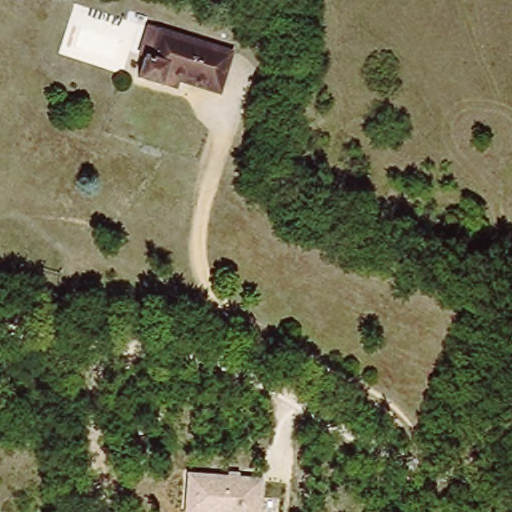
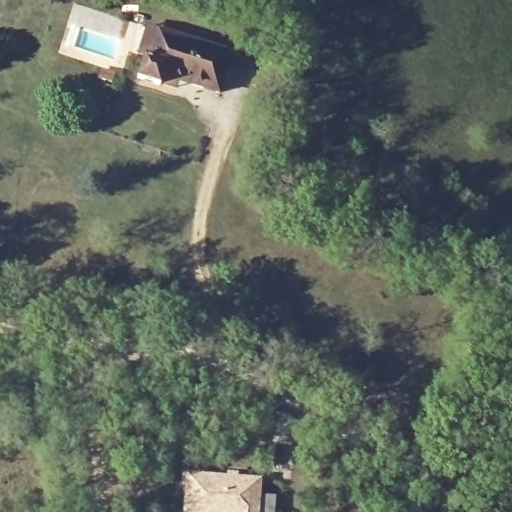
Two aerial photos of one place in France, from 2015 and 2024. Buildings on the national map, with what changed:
unchanged [(220,95),(166,79),(159,90),(138,82),(147,58),(153,60),(160,35),(231,54),(220,95)]
unchanged [(261,477),(259,512),(181,512),(186,470),(261,477)]

